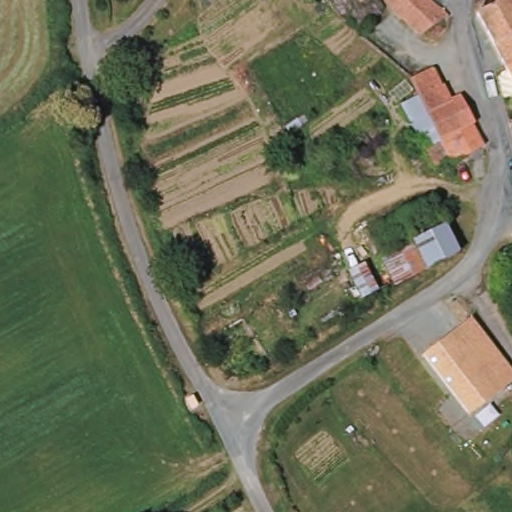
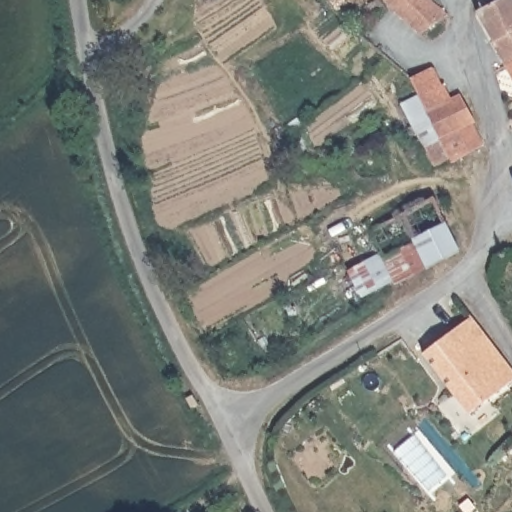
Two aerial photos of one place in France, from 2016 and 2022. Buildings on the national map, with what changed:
unchanged [(434,42),(426,27),(420,32),(391,8),(386,0),(431,0),(438,6),(446,13),(451,20),(455,27),(451,30),(434,42)]
unchanged [(480,15),(512,0),(512,66),(510,67),(480,15)]
unchanged [(512,66),(512,70),(510,67),(512,66)]
unchanged [(472,122),(440,137),(420,95),(411,77),(412,76),(428,68),(437,84),(443,81),(451,96),(460,92),(475,120),(472,122)]
unchanged [(482,143),(458,156),(451,159),(449,155),(435,162),(433,163),(425,147),(441,139),(440,137),(472,122),(483,143),(482,143)]
unchanged [(374,232),(403,217),(396,203),(426,188),(432,202),(437,199),(449,226),(386,259),(374,232)]
unchanged [(430,274),(429,272),(399,286),(386,259),(449,226),(463,255),(430,274)]
unchanged [(475,320),(512,367),(512,388),(473,417),(427,356),(475,320)]

